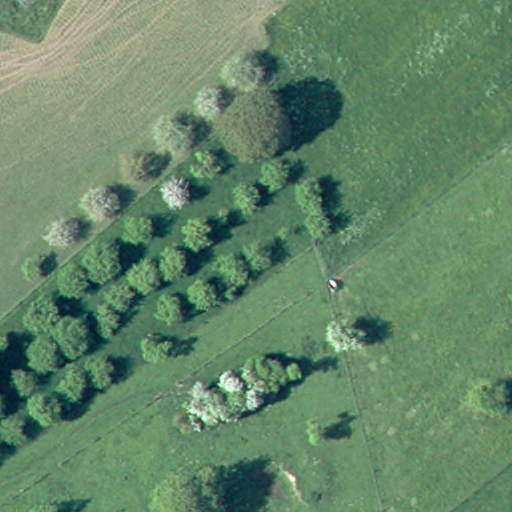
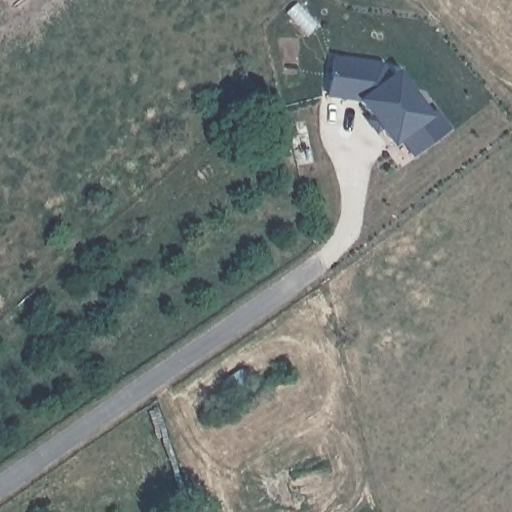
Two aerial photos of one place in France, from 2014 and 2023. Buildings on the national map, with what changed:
new [(378,63),(388,75),(398,68),(425,104),(432,101),(451,129),(413,157),(399,137),(392,144),(359,101),(326,96),(332,57),(378,63)]

